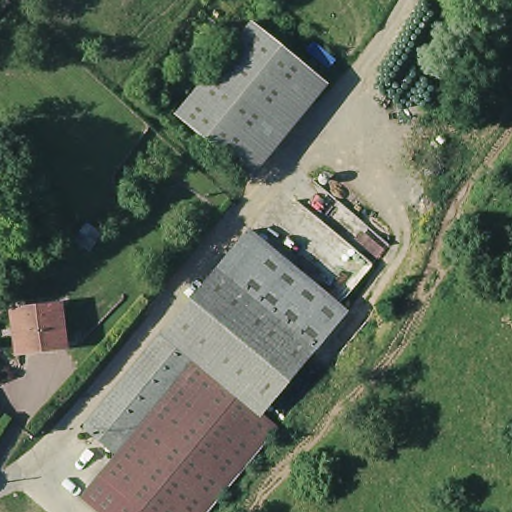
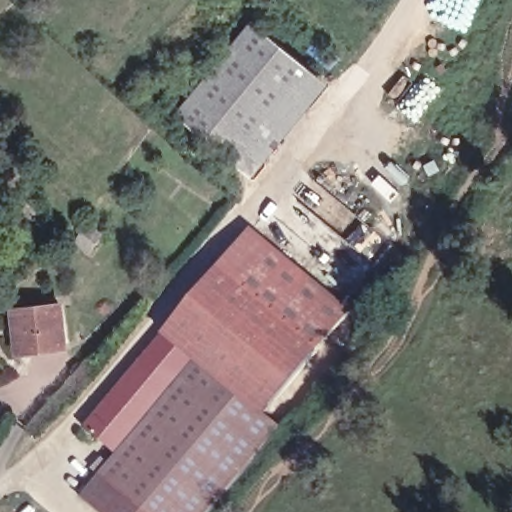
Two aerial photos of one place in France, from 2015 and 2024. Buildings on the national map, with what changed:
unchanged [(181,103),(246,24),(325,92),(262,168),(181,103)]
unchanged [(181,103),(262,168),(254,177),(168,117),(181,103)]
unchanged [(98,235),(89,249),(76,241),(86,226),(98,235)]
unchanged [(214,267),(245,229),(342,310),(311,348),(214,267)]
unchanged [(161,331),(214,267),(311,348),(259,411),(277,426),(205,512),(141,512),(95,476),(113,455),(110,453),(192,356),(161,331)]
unchanged [(58,345),(13,350),(9,310),(54,305),(58,345)]
unchanged [(110,453),(80,428),(161,331),(192,356),(110,453)]
unchanged [(95,476),(141,512),(92,512),(76,498),(95,476)]

